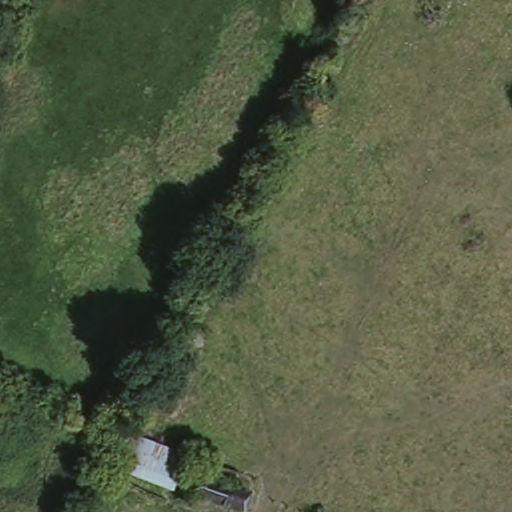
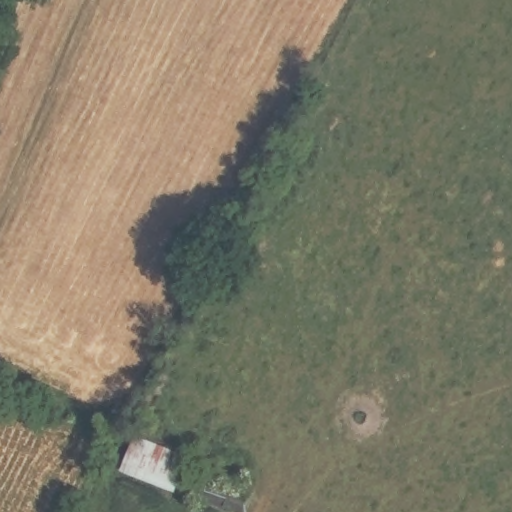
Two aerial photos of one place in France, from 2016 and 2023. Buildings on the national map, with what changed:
unchanged [(109,467),(125,437),(256,489),(247,512),(230,512),(109,467)]

